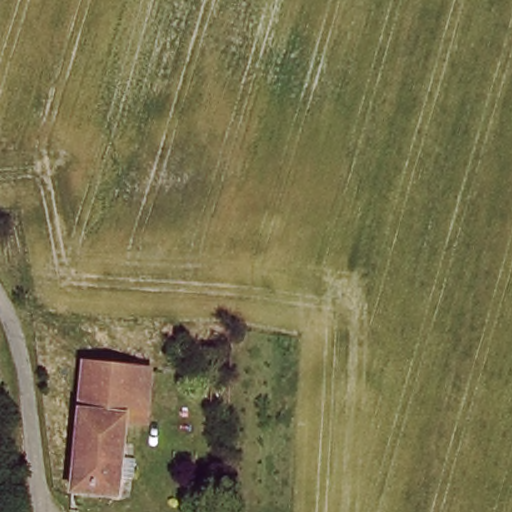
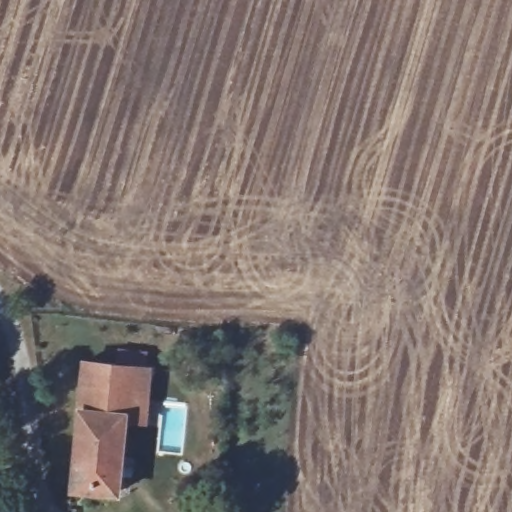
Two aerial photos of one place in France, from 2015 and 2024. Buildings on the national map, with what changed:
unchanged [(79,414),(84,364),(153,370),(146,421),(123,419),(79,414)]
unchanged [(123,419),(116,496),(70,490),(79,414),(123,419)]

